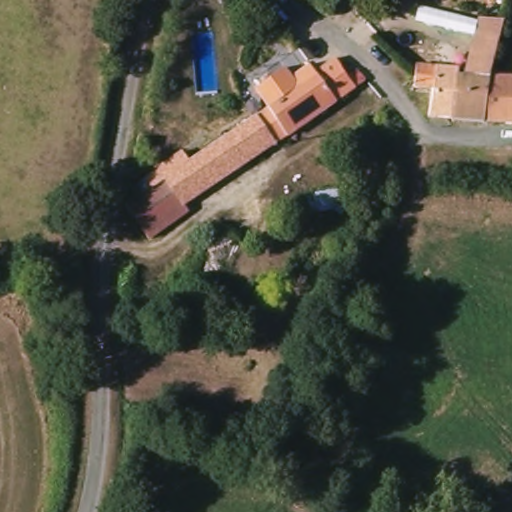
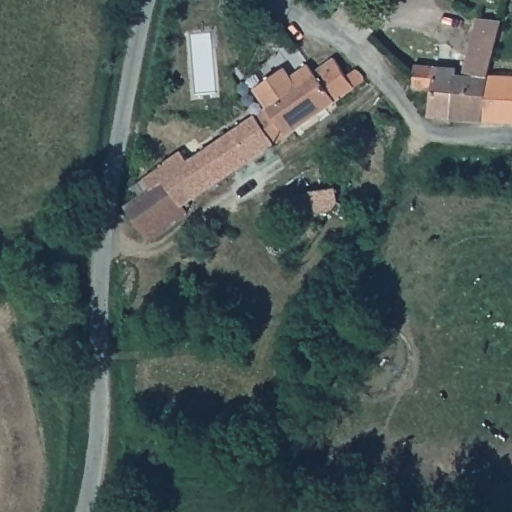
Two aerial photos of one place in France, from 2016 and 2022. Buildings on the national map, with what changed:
unchanged [(462,68),(470,51),(486,15),(508,26),(495,60),(495,62),(487,79),(493,79),(485,126),(485,127),(430,120),(433,94),(413,93),(412,78),(416,66),(462,68)]
unchanged [(285,136),(266,109),(254,89),(284,69),(290,76),(307,64),(313,70),(331,58),(344,71),(354,65),(363,80),(285,136)]
unchanged [(512,131),(485,127),(485,126),(493,79),(512,81),(512,131)]
unchanged [(182,209),(186,214),(150,240),(125,209),(150,193),(145,184),(179,159),(186,169),(221,143),(266,109),(285,136),(182,209)]
unchanged [(303,196),(303,194),(330,190),(331,201),(325,212),(295,218),(290,199),(303,196)]

